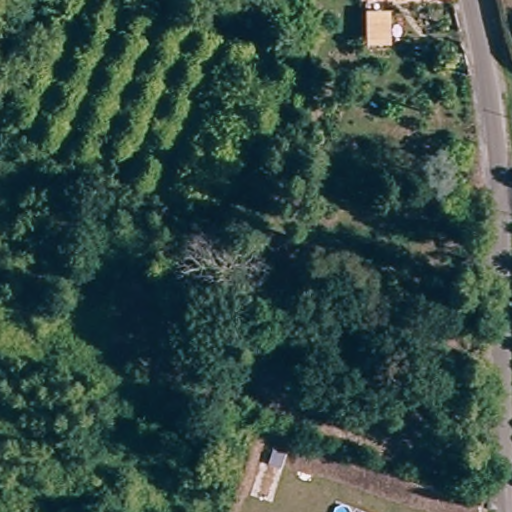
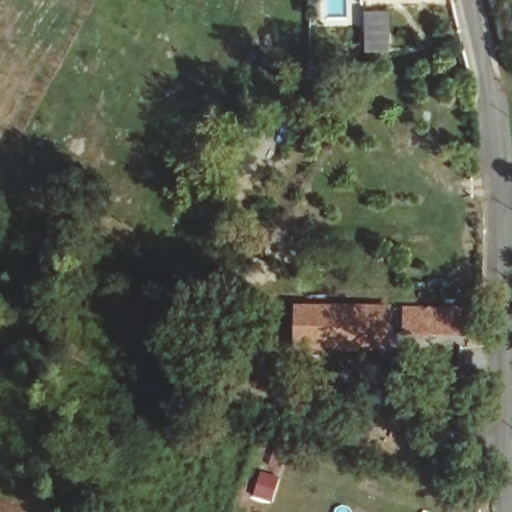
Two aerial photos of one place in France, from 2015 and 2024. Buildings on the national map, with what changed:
new [(293,303),(393,305),(393,327),(394,343),(393,352),(292,357),(293,303)]
new [(398,327),(400,306),(472,303),(472,338),(394,343),(393,327),(398,327)]

